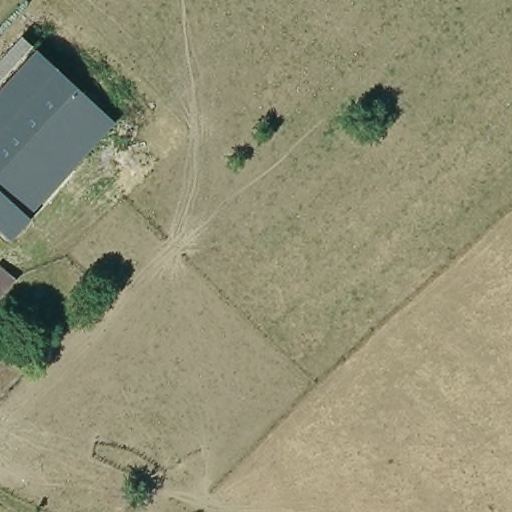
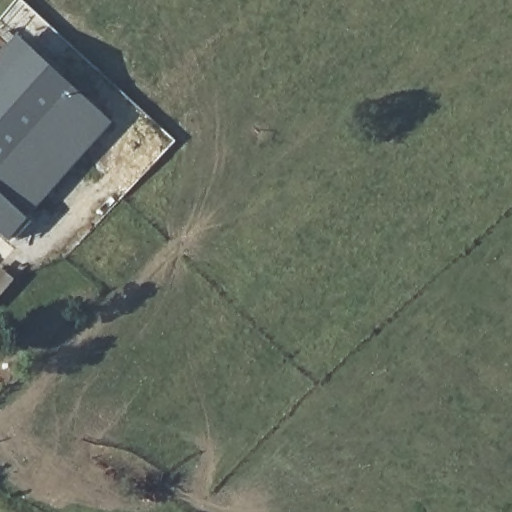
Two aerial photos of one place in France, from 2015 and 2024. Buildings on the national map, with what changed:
unchanged [(10,244),(0,236),(0,57),(22,34),(116,128),(10,244)]

